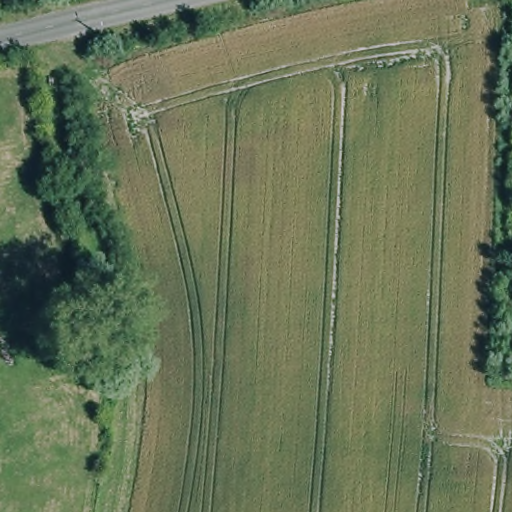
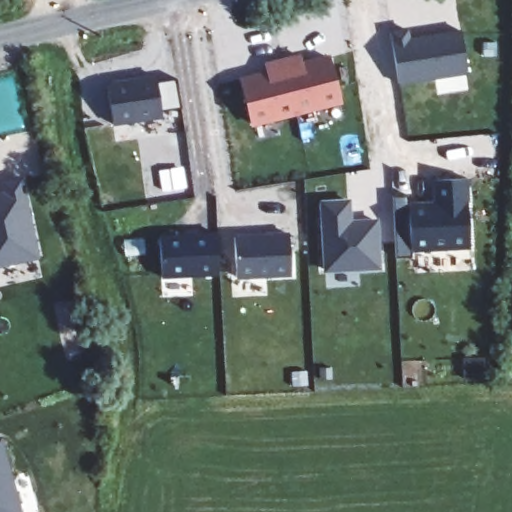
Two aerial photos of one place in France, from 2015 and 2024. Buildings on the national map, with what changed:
new [(463,52),(467,74),(398,85),(392,42),(454,32),(457,53),(463,52)]
new [(245,84),(272,77),(270,67),(302,59),(305,69),(332,62),(343,105),(255,127),(245,84)]
new [(111,91),(114,87),(160,80),(160,85),(180,82),(185,112),(165,115),(165,120),(117,127),(111,91)]
new [(162,174),(184,170),(187,192),(165,196),(162,174)]
new [(15,188),(14,182),(22,180),(40,256),(0,266),(0,191),(15,188)]
new [(412,210),(438,209),(437,184),(470,182),(473,251),(414,254),(412,210)]
new [(325,206),(352,205),(353,226),(380,225),(382,271),(330,274),(325,206)]
new [(218,275),(162,278),(160,234),(217,232),(218,275)]
new [(238,241),(293,238),(295,278),(240,281),(238,241)]
new [(23,512),(0,512),(0,436),(2,436),(23,512)]

